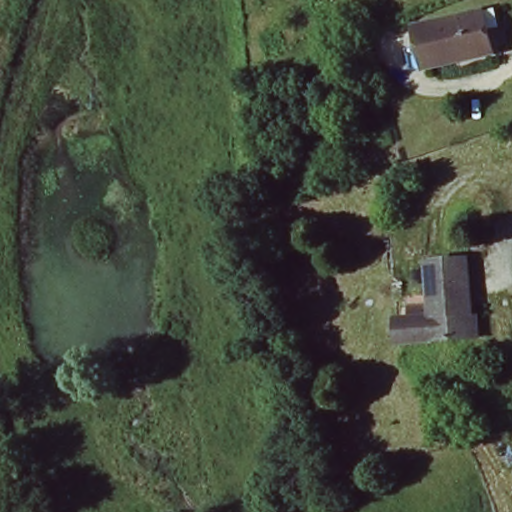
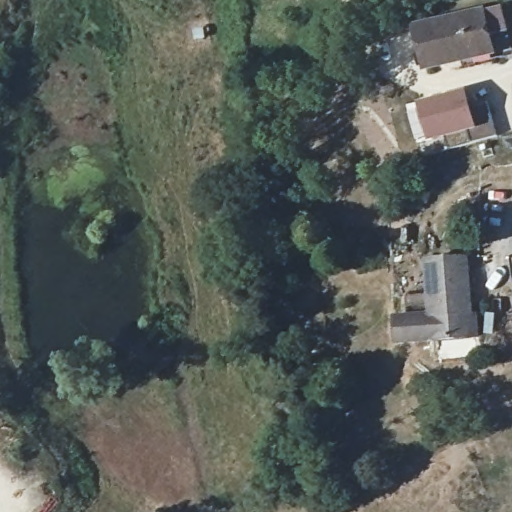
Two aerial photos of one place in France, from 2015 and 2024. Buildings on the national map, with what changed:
unchanged [(486,13),(494,49),(461,56),(462,63),(427,70),(418,28),(486,13)]
new [(467,90),(474,112),(488,106),(496,135),(451,150),(449,137),(430,142),(420,104),(467,90)]
unchanged [(483,339),(470,340),(397,342),(396,313),(434,312),(433,260),(472,258),(474,315),(482,314),(483,339)]

